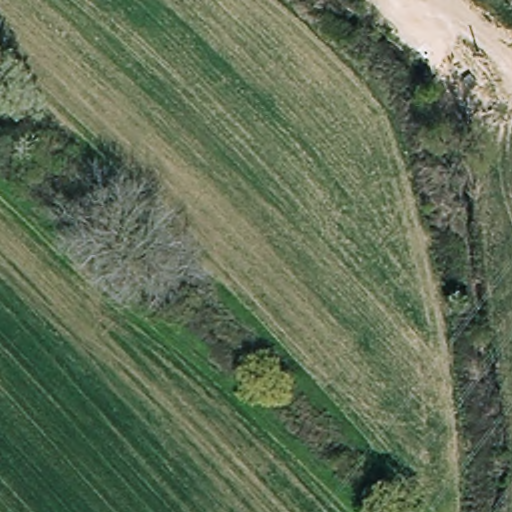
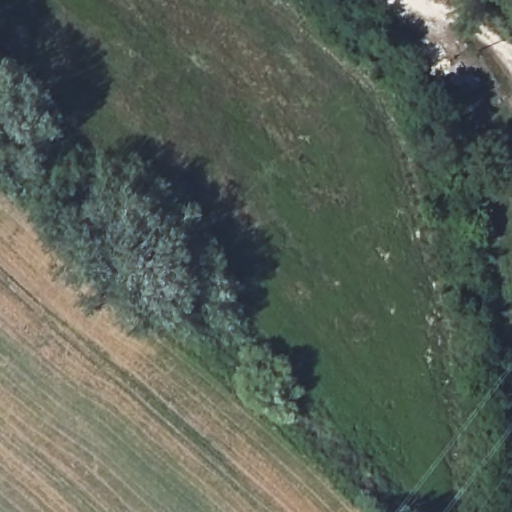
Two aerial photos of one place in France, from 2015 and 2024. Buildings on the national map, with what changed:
unchanged [(476,73),(484,84),(477,89),(469,78),(476,73)]

